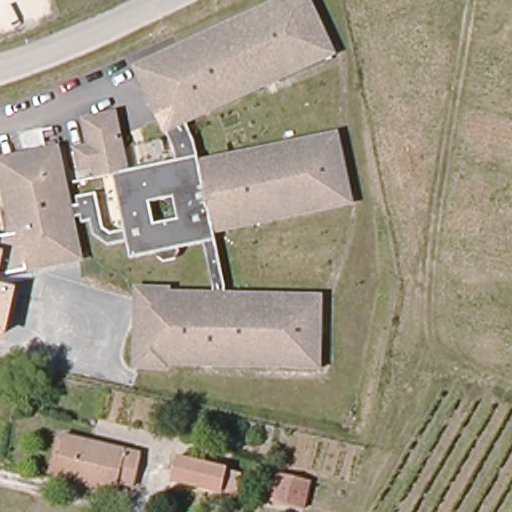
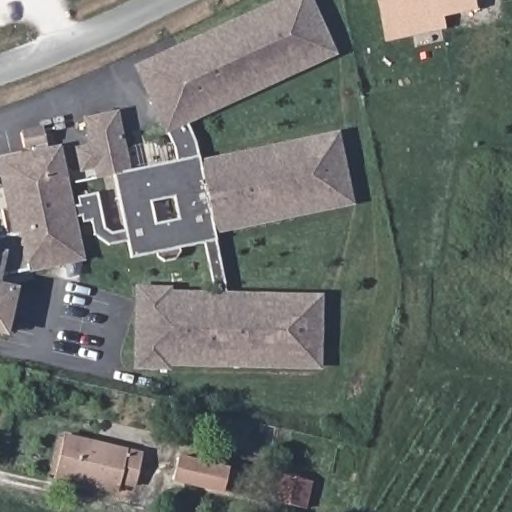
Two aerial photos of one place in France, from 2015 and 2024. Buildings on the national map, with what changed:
unchanged [(312,0),(338,56),(187,125),(195,141),(199,160),(340,132),(355,206),(217,235),(228,291),(324,295),(322,370),(171,368),(171,370),(133,371),(134,284),(172,285),(172,290),(213,291),(204,243),(132,260),(129,243),(110,246),(93,235),(90,221),(77,224),(85,261),(19,275),(14,253),(1,255),(0,251),(0,231),(9,230),(0,183),(0,159),(60,145),(71,198),(98,194),(104,227),(111,234),(125,231),(115,176),(97,179),(95,170),(79,172),(73,148),(88,144),(82,119),(118,111),(126,147),(149,142),(155,165),(181,160),(171,132),(165,135),(132,66),(279,0),(312,0)]
new [(444,17),(446,30),(384,43),(375,0),(475,0),(477,10),(444,17)]
unchanged [(1,276),(0,282),(0,251),(1,255),(14,253),(19,275),(1,276)]
unchanged [(17,288),(6,337),(0,336),(0,285),(17,288)]
unchanged [(113,490),(114,485),(80,476),(79,481),(49,473),(59,433),(138,453),(131,481),(128,493),(113,490)]
unchanged [(220,499),(170,486),(172,455),(227,467),(220,499)]
unchanged [(306,512),(304,512),(268,502),(274,472),(313,481),(306,512)]

